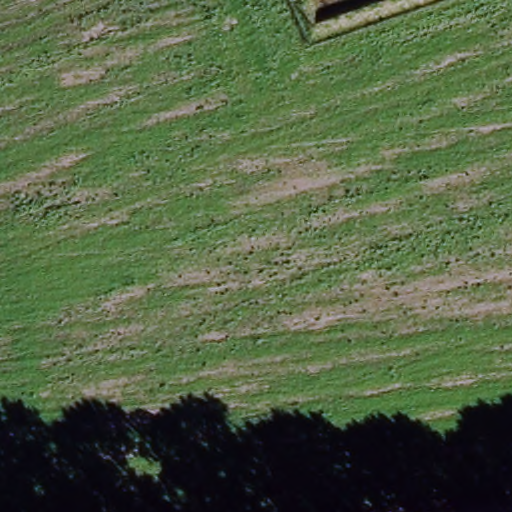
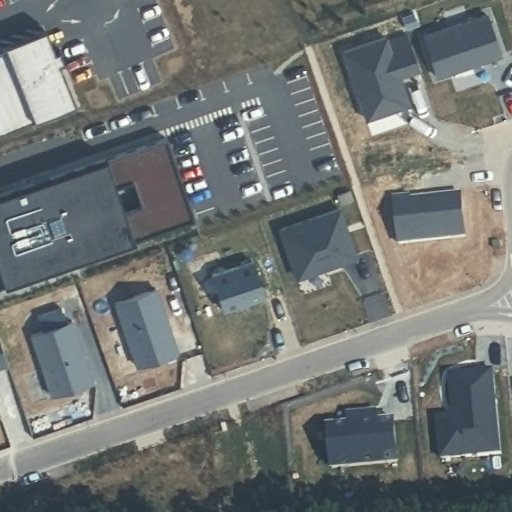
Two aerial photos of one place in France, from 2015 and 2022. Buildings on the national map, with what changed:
new [(486,15),(500,55),(437,76),(423,36),(486,15)]
new [(0,135),(0,53),(5,50),(4,46),(44,30),(54,55),(59,51),(63,61),(59,63),(75,105),(34,120),(0,135)]
new [(385,37),(387,41),(407,35),(418,68),(399,75),(409,104),(366,119),(343,52),(385,37)]
new [(134,240),(3,285),(0,285),(0,194),(107,159),(166,140),(192,221),(134,240)]
new [(409,196),(410,200),(460,194),(465,237),(398,244),(393,198),(409,196)]
new [(339,209),(356,256),(339,261),(339,263),(325,267),(324,265),(296,275),(279,230),(339,209)]
new [(252,261),(264,296),(223,310),(212,275),(252,261)]
new [(156,289),(178,352),(137,366),(115,303),(156,289)]
new [(72,320),(92,381),(51,395),(31,335),(72,320)]
new [(0,344),(7,364),(0,366),(0,344)]
new [(453,416),(459,416),(458,408),(452,409),(449,375),(492,370),(499,453),(441,460),(437,418),(453,416)]
new [(348,425),(359,423),(358,413),(376,412),(377,421),(393,420),(397,463),(331,469),(327,426),(348,425)]

